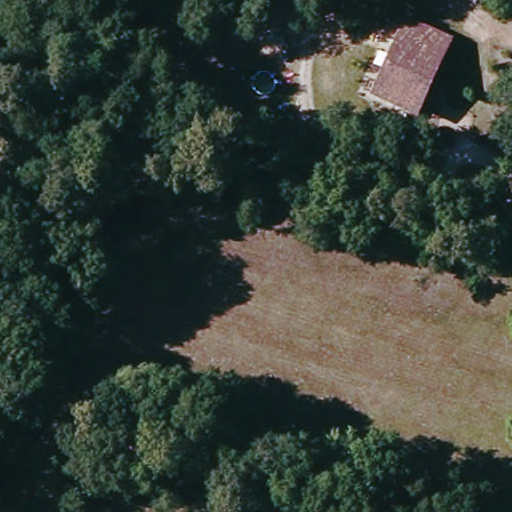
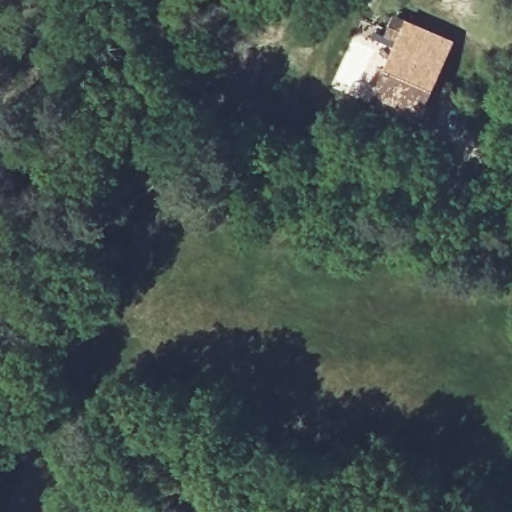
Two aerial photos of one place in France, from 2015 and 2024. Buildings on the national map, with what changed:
unchanged [(423,81),(428,83),(420,104),(402,96),(398,105),(379,96),(406,39),(394,33),(402,17),(454,42),(439,79),(426,73),(423,81)]

